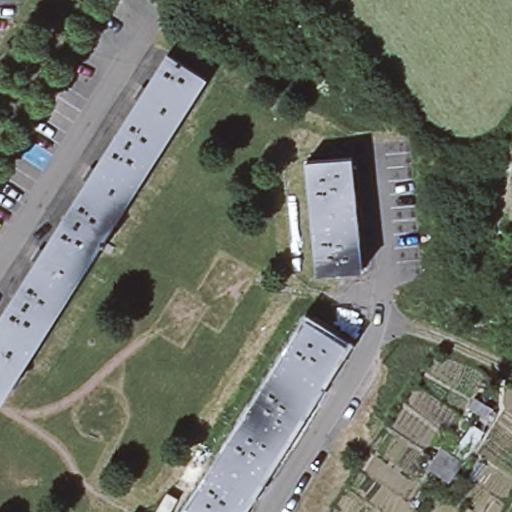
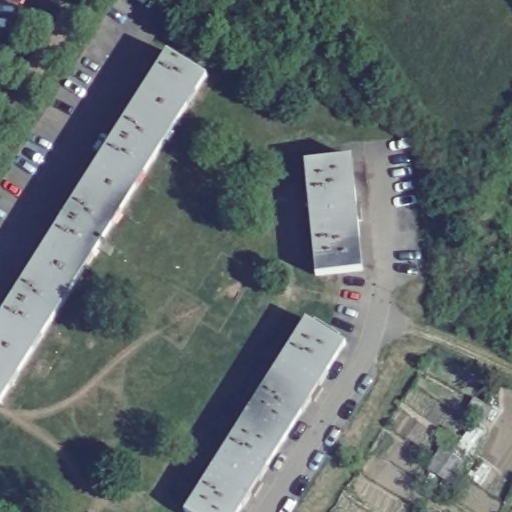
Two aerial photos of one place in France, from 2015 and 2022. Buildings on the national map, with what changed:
unchanged [(172,54),(210,78),(159,160),(120,135),(142,100),(138,98),(146,85),(150,88),(172,54)]
unchanged [(120,135),(159,160),(107,240),(69,216),(90,181),(87,179),(95,167),(99,170),(120,135)]
unchanged [(317,275),(305,162),(350,158),(355,207),(360,206),(361,221),(357,221),(362,270),(342,272),(331,273),(331,277),(327,277),(327,274),(317,275)]
unchanged [(35,260),(43,248),(47,250),(69,216),(107,240),(107,241),(110,243),(107,247),(105,245),(56,322),(17,297),(40,263),(35,260)]
unchanged [(0,325),(17,297),(56,322),(5,403),(0,401),(0,325)]
unchanged [(322,389),(314,401),(310,398),(284,440),(245,416),(246,415),(244,414),(246,410),(248,412),(306,320),(344,345),(318,386),(322,389)]
unchanged [(238,512),(187,512),(185,511),(245,416),(284,440),(258,481),(262,484),(254,496),(250,493),(238,512)]

